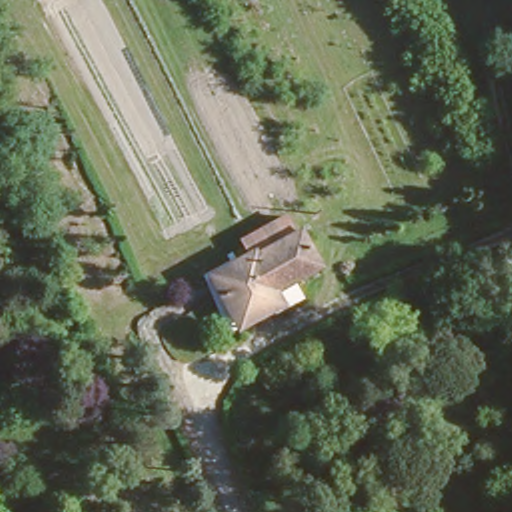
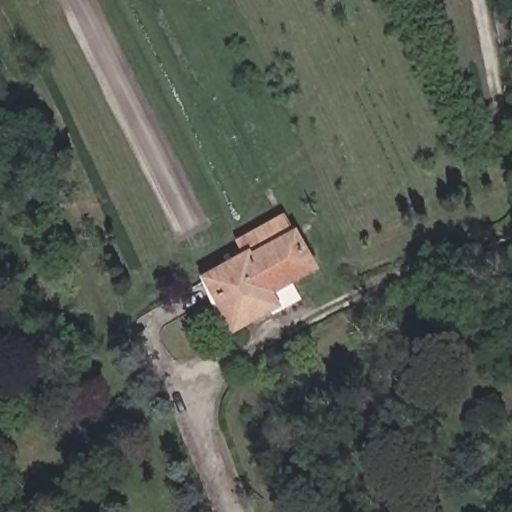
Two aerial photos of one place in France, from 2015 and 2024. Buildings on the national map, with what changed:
unchanged [(293,273),(302,293),(225,330),(199,274),(248,250),(238,232),(287,206),(314,263),(293,273)]

